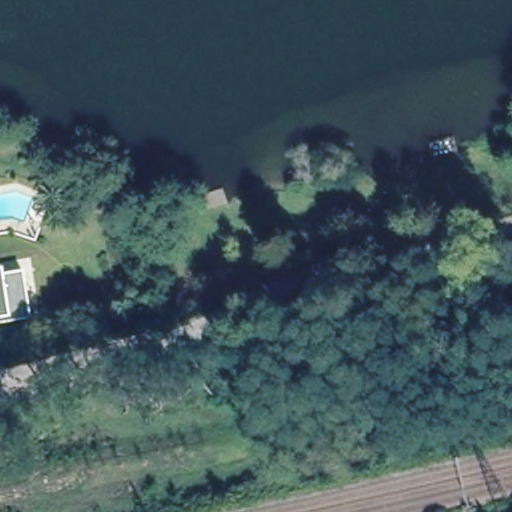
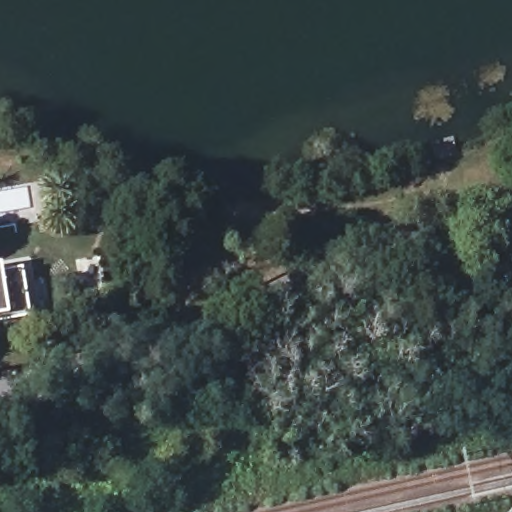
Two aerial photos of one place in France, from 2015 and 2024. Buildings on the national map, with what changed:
unchanged [(30,318),(0,323),(0,274),(22,270),(30,318)]

